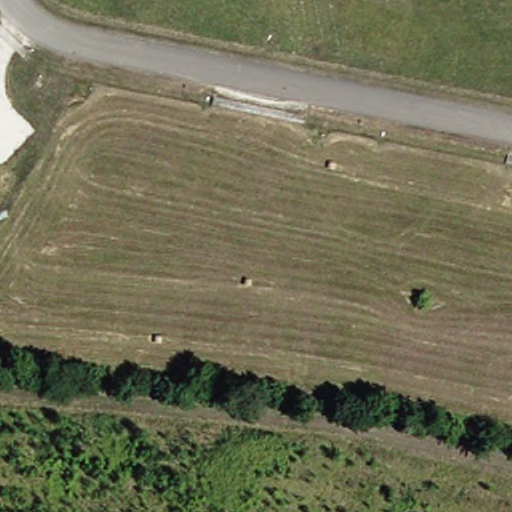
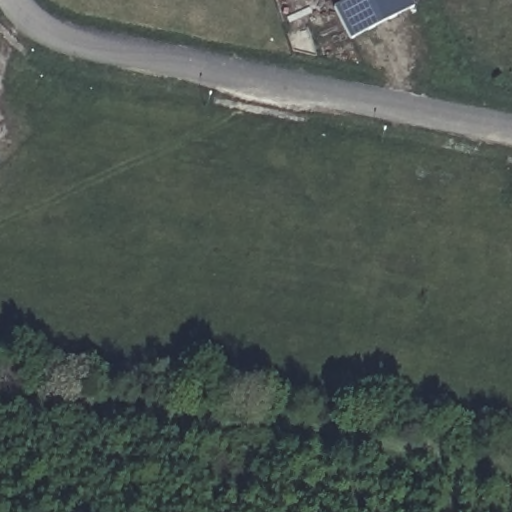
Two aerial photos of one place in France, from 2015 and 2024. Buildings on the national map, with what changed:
new [(350,39),(334,7),(343,3),(341,0),(411,0),(414,7),(350,39)]

